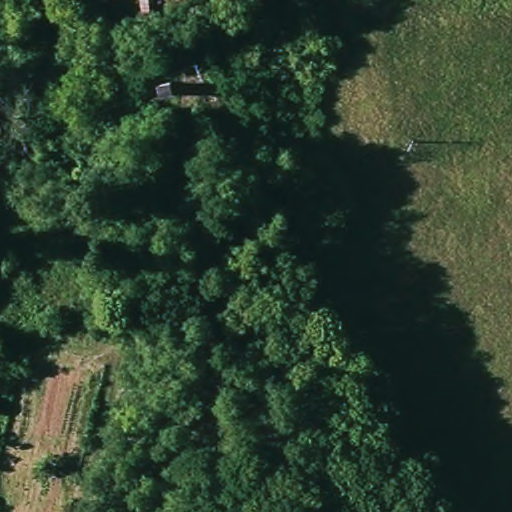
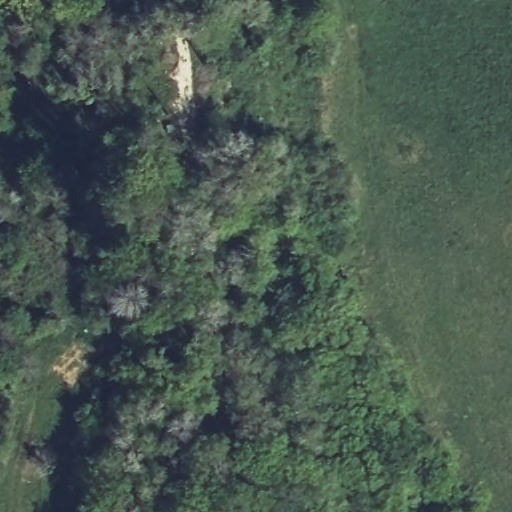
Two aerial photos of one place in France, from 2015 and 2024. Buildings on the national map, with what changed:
unchanged [(160,69),(172,69),(173,82),(160,82),(160,69)]

